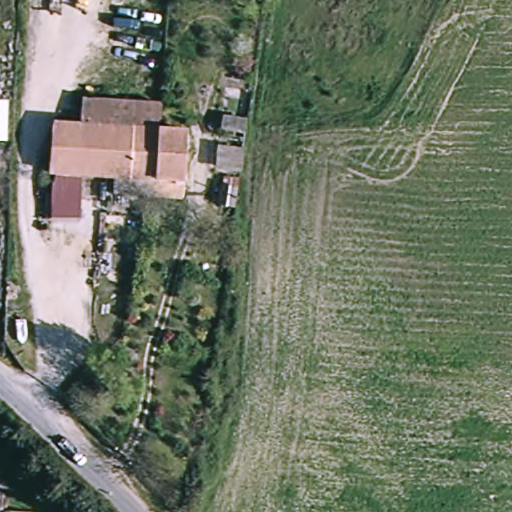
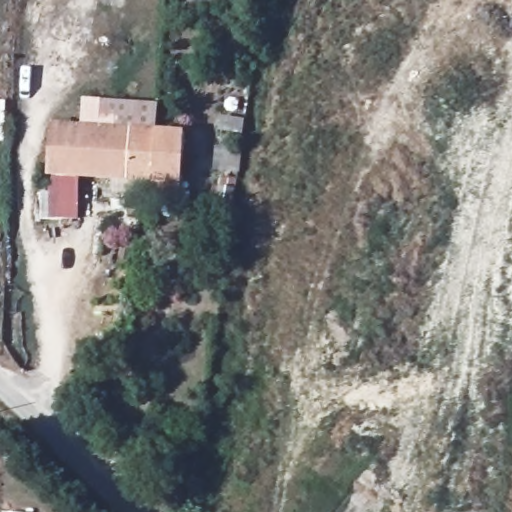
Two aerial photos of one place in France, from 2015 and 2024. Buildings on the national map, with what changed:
unchanged [(46,123),(76,124),(76,99),(157,104),(155,131),(185,131),(180,203),(150,200),(150,185),(76,182),(77,196),(44,194),(46,123)]

